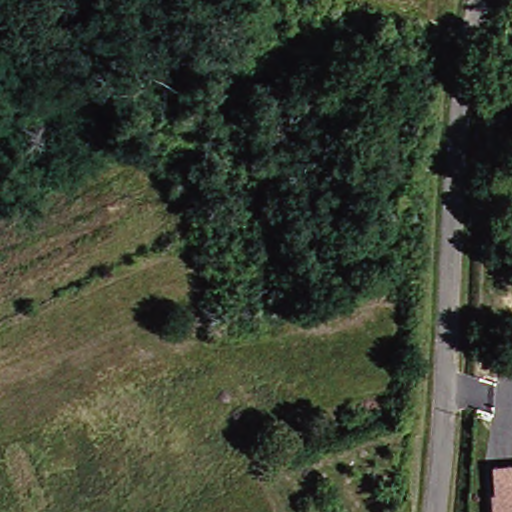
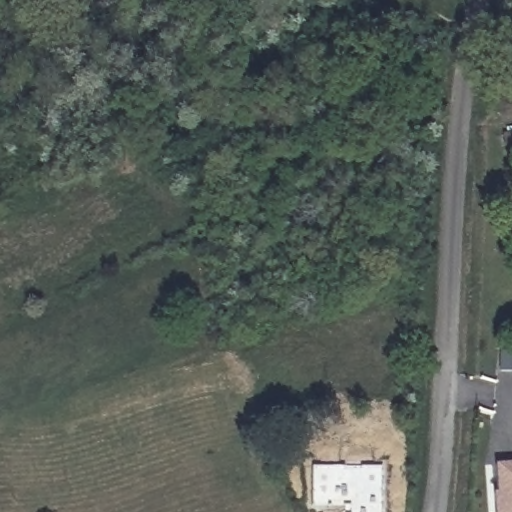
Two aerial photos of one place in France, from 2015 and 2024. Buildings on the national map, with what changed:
unchanged [(491,488),(489,461),(512,460),(512,512),(490,512),(488,489),(491,488)]
new [(343,512),(342,506),(309,506),(310,466),(379,467),(380,512),(343,512)]

